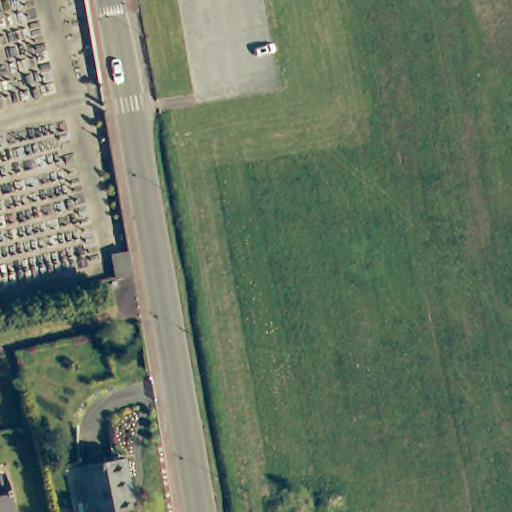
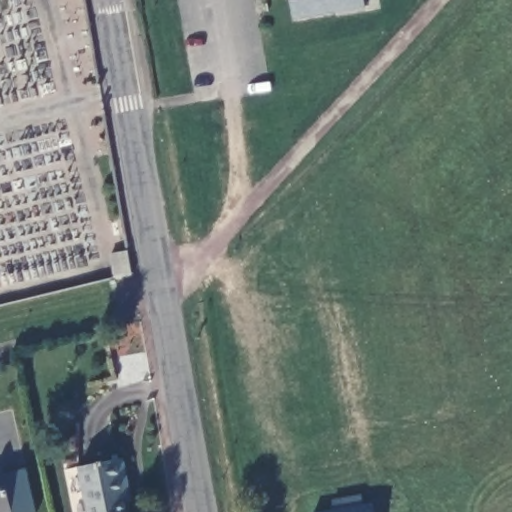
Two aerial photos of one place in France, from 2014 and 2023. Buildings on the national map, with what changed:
new [(293,19),(290,0),(364,0),(365,8),(293,19)]
unchanged [(133,274),(113,279),(109,252),(128,248),(133,274)]
unchanged [(126,482),(124,484),(130,512),(92,512),(82,470),(120,461),(126,482)]
unchanged [(7,479),(15,512),(0,512),(0,480),(7,479)]
new [(373,502),(375,512),(313,512),(373,502)]

